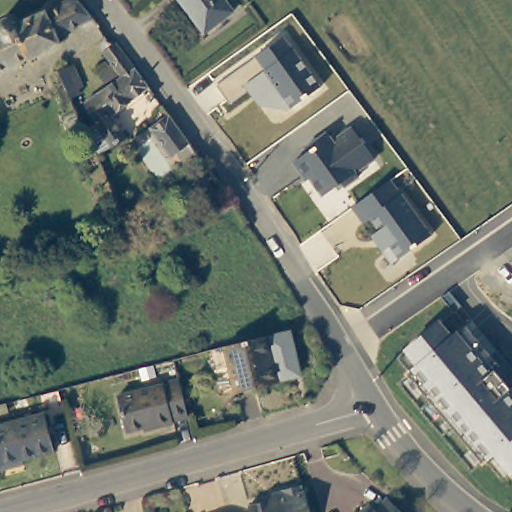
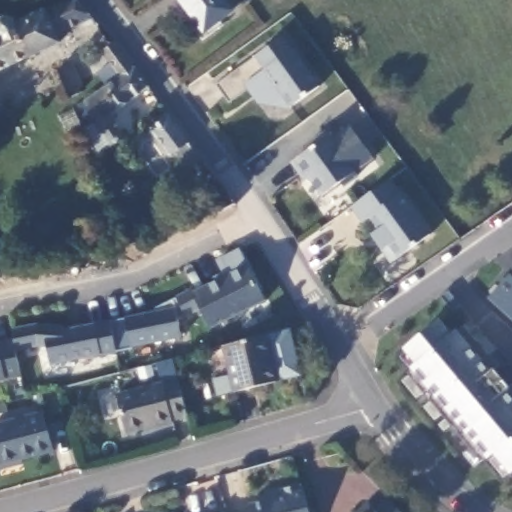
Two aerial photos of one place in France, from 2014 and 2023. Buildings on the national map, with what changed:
unchanged [(98,20),(103,25),(90,31),(85,25),(60,35),(63,44),(0,74),(0,26),(2,21),(9,18),(16,18),(22,25),(73,0),(81,0),(98,20)]
unchanged [(231,11),(217,21),(214,17),(199,29),(179,0),(222,0),(231,11)]
unchanged [(248,92),(230,105),(216,85),(255,55),(283,35),(320,87),(288,110),(257,105),(248,92)]
unchanged [(69,127),(84,122),(74,101),(65,83),(80,75),(88,95),(119,74),(113,62),(125,55),(143,79),(92,114),(103,134),(92,140),(90,135),(75,141),(69,127)]
unchanged [(92,140),(103,134),(92,114),(143,79),(157,97),(118,125),(133,149),(104,165),(92,140)]
unchanged [(190,170),(155,124),(168,115),(197,154),(203,161),(190,170)]
unchanged [(309,179),(304,182),(292,164),(308,151),(304,147),(326,131),(332,140),(351,126),(373,160),(354,173),(358,177),(340,190),(337,185),(322,196),(309,179)]
unchanged [(370,236),(378,230),(370,219),(363,224),(351,207),(390,180),(431,234),(391,262),(370,236)]
new [(192,289),(194,292),(224,275),(216,261),(240,250),(265,300),(211,329),(201,310),(186,317),(176,299),(192,289)]
new [(508,272),(512,276),(512,319),(487,298),(508,272)]
new [(153,311),(173,301),(182,337),(116,354),(109,323),(153,311)]
unchanged [(483,462),(408,370),(414,365),(402,348),(438,317),(453,334),(463,326),(497,365),(492,370),(511,392),(512,392),(512,473),(508,475),(492,455),(483,462)]
new [(34,325),(64,330),(93,323),(95,326),(109,323),(116,354),(101,357),(100,355),(50,367),(47,350),(38,347),(17,352),(12,330),(34,325)]
unchanged [(277,331),(280,330),(285,351),(281,353),(287,376),(267,381),(267,383),(226,393),(213,347),(277,331)]
new [(12,340),(20,378),(5,381),(0,383),(0,343),(12,340)]
unchanged [(186,415),(170,418),(170,422),(153,426),(152,423),(126,430),(118,393),(161,383),(161,381),(177,376),(186,415)]
unchanged [(52,451),(21,460),(22,464),(0,469),(0,427),(41,415),(52,451)]
unchanged [(278,495),(278,491),(300,483),(308,512),(249,512),(247,505),(278,495)]
unchanged [(372,510),(386,497),(400,512),(358,512),(365,505),(372,510)]
unchanged [(229,512),(227,512),(228,511),(229,512)]

